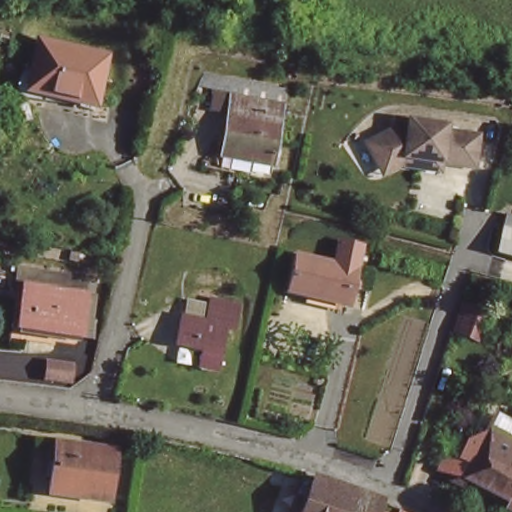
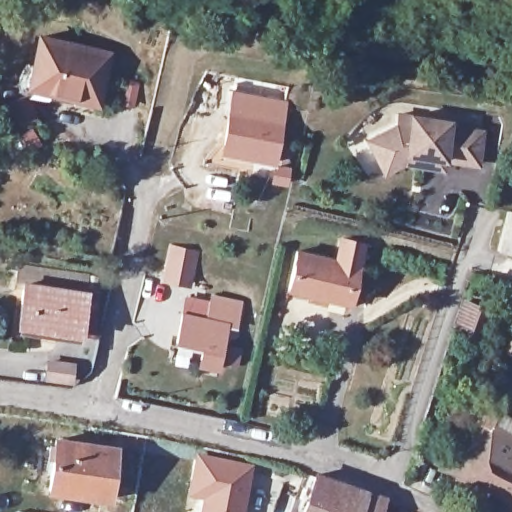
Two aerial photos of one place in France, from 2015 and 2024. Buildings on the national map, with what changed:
unchanged [(72,103),(75,93),(29,84),(37,42),(107,57),(95,108),(72,103)]
unchanged [(222,147),(232,97),(283,106),(271,167),(255,164),(221,157),(222,147)]
unchanged [(449,161),(446,171),(406,164),(389,174),(367,143),(397,122),(407,125),(412,114),(490,130),(484,168),(449,161)]
unchanged [(511,213),(512,210),(512,245),(503,242),(511,213)]
unchanged [(297,290),(305,250),(365,262),(356,303),(297,290)]
new [(168,259),(193,265),(186,296),(161,291),(168,259)]
unchanged [(86,297),(80,338),(39,331),(21,327),(23,311),(27,285),(86,297)]
unchanged [(177,343),(184,315),(208,321),(213,298),(241,305),(234,331),(223,328),(216,353),(177,343)]
unchanged [(464,335),(468,324),(470,316),(496,323),(493,332),(489,344),(464,335)]
unchanged [(493,425),(499,415),(512,422),(512,447),(487,435),(493,425)]
unchanged [(458,456),(463,442),(476,447),(483,433),(487,435),(512,447),(512,506),(450,472),(458,456)]
unchanged [(95,496),(95,492),(57,488),(61,444),(116,448),(112,497),(95,496)]
new [(246,512),(200,512),(202,498),(188,496),(194,456),(253,466),(246,512)]
unchanged [(304,502),(312,482),(337,492),(330,512),(281,512),(287,497),(304,502)]
unchanged [(339,487),(359,495),(352,512),(330,512),(337,492),(339,487)]
unchanged [(352,512),(359,495),(380,503),(377,512),(352,512)]

